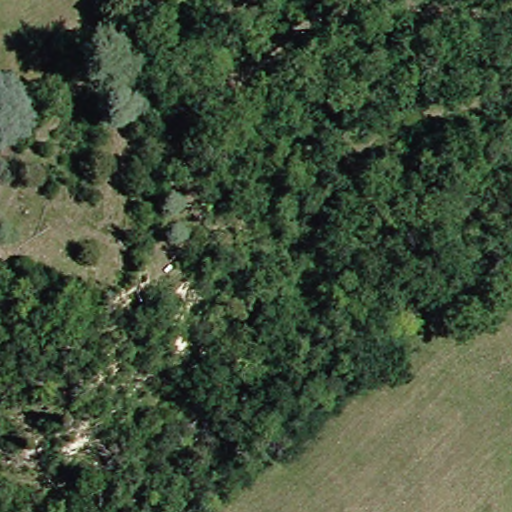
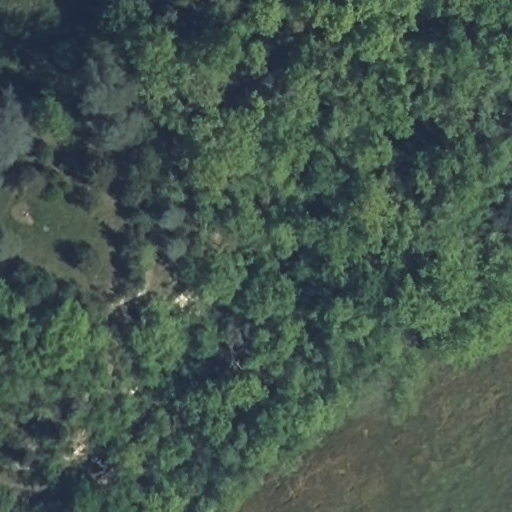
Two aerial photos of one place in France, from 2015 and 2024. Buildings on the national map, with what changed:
[]

